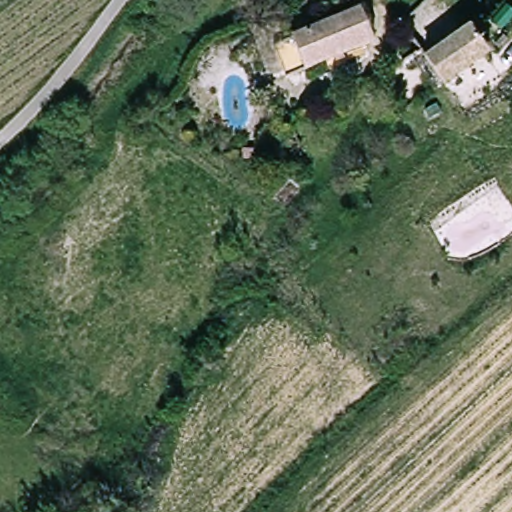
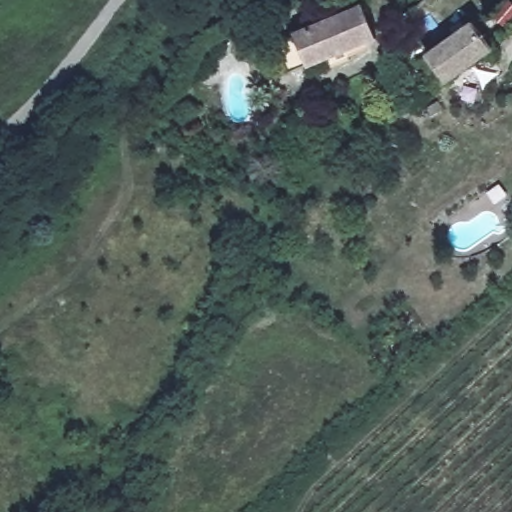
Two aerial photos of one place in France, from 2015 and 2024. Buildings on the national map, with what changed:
unchanged [(357,2),(375,33),(308,67),(291,36),(357,2)]
unchanged [(492,55),(445,85),(426,56),(431,53),(475,26),(492,55)]

